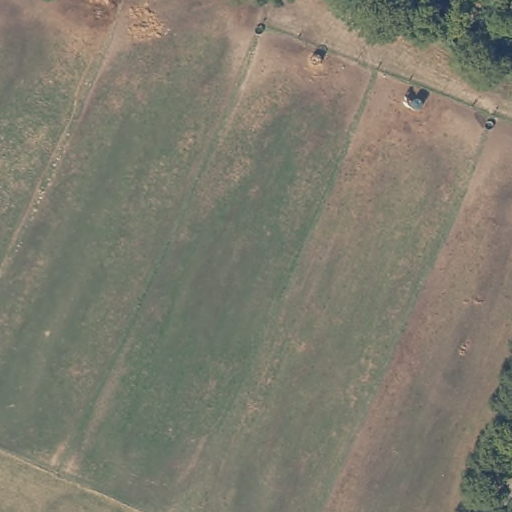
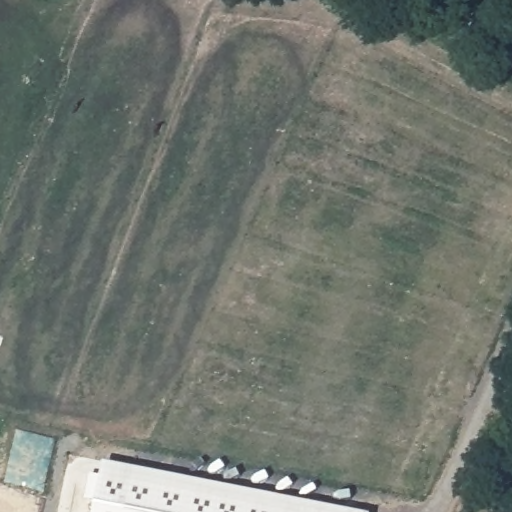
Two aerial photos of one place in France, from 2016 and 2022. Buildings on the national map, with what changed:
new [(104,460),(370,512),(94,512),(104,460)]

